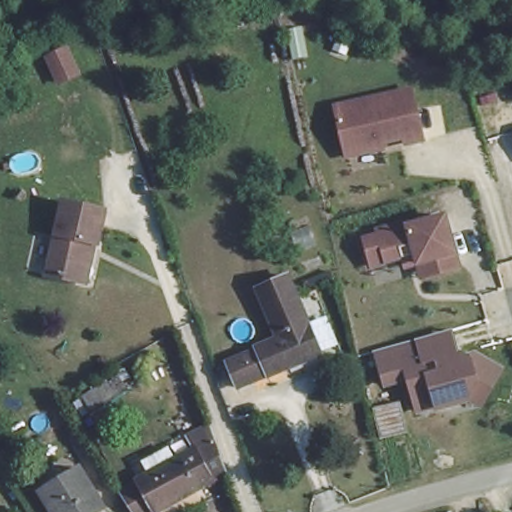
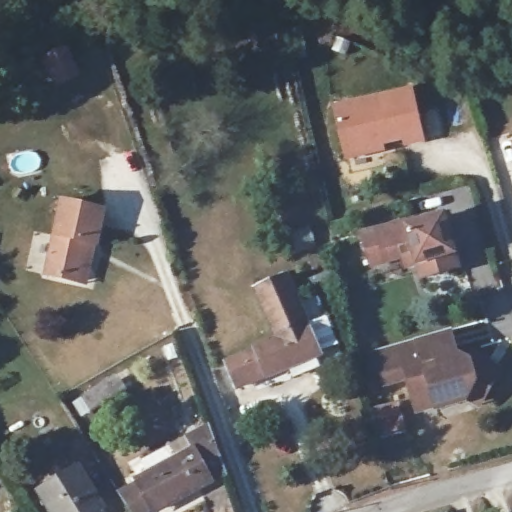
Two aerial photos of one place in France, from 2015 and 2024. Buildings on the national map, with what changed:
unchanged [(53,54),(62,77),(43,84),(34,60),(53,54)]
unchanged [(428,142),(349,156),(339,104),(415,85),(428,142)]
unchanged [(81,282),(50,276),(60,200),(108,209),(101,241),(93,283),(81,282)]
unchanged [(367,240),(382,236),(380,231),(410,223),(411,227),(447,217),(462,268),(424,279),(415,246),(403,249),(406,258),(374,267),(367,240)]
unchanged [(232,362),(278,342),(259,291),(287,280),(318,358),(242,389),(232,362)]
unchanged [(455,329),(462,357),(476,353),(505,368),(487,406),(475,401),(439,407),(419,412),(411,384),(389,388),(378,351),(455,329)]
unchanged [(113,366),(118,377),(82,392),(77,381),(113,366)]
unchanged [(395,402),(402,430),(375,437),(368,410),(395,402)]
unchanged [(192,443),(217,433),(234,477),(151,512),(138,512),(130,501),(122,488),(149,477),(143,462),(170,452),(174,466),(196,456),(192,443)]
unchanged [(80,465),(105,502),(90,512),(50,512),(38,492),(80,465)]

